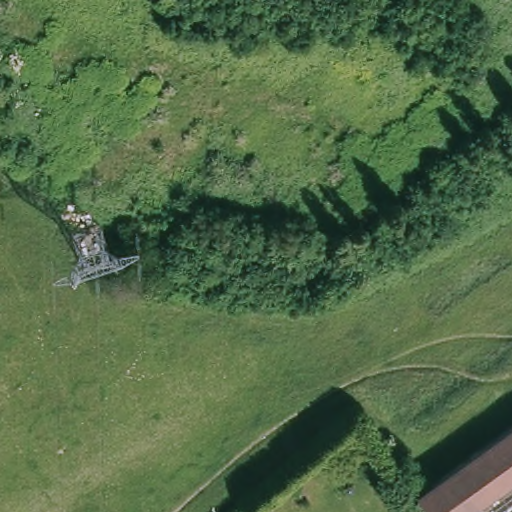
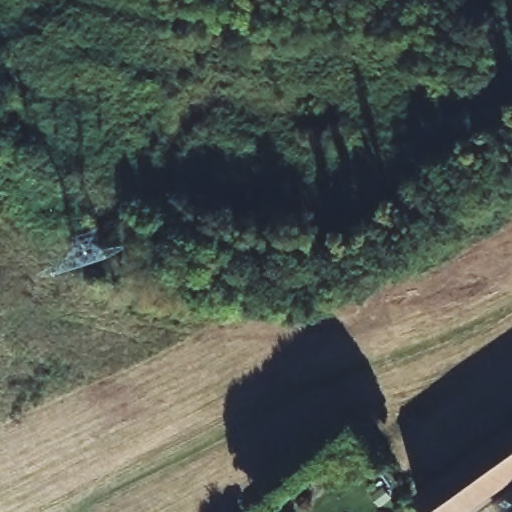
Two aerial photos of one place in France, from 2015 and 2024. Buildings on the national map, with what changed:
unchanged [(492,489),(476,500),(484,512),(438,512),(422,486),(512,427),(512,476),(492,489)]
unchanged [(476,500),(492,489),(512,476),(512,512),(508,512),(505,507),(498,512),(484,512),(476,500)]

